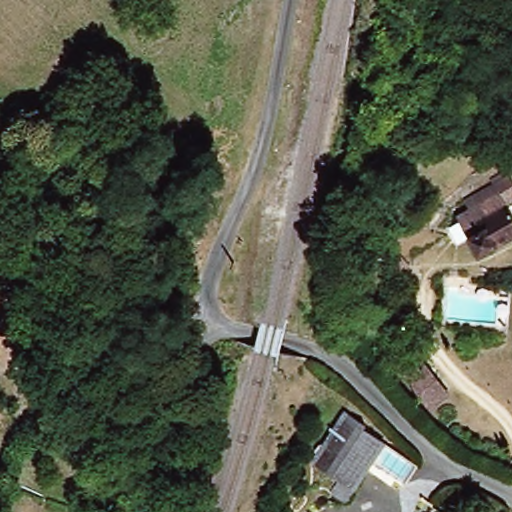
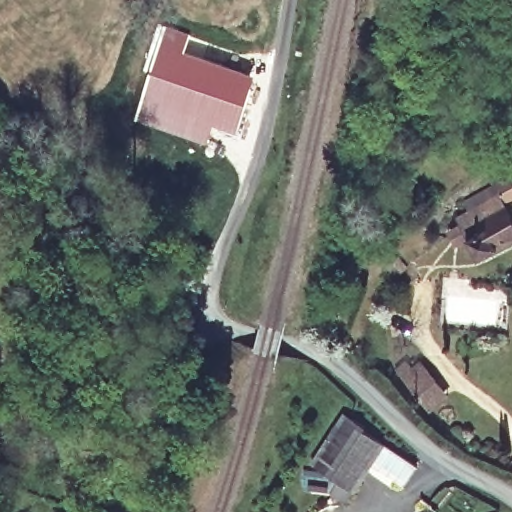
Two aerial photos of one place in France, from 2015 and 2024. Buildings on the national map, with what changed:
new [(165,27),(191,35),(186,53),(245,71),(254,87),(242,130),(216,122),(210,138),(140,117),(165,27)]
unchanged [(477,190),(510,161),(512,163),(512,250),(505,256),(485,236),(467,218),(482,204),(485,202),(477,190)]
unchanged [(450,391),(435,409),(404,383),(418,365),(450,391)]
unchanged [(349,482),(320,467),(347,416),(372,431),(349,482)]
unchanged [(372,431),(389,441),(356,506),(341,499),(349,482),(372,431)]

